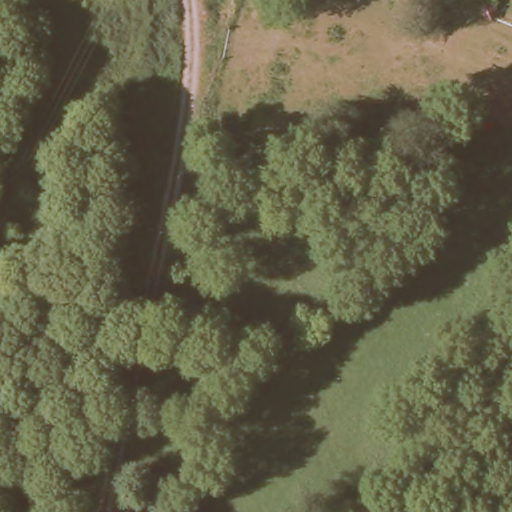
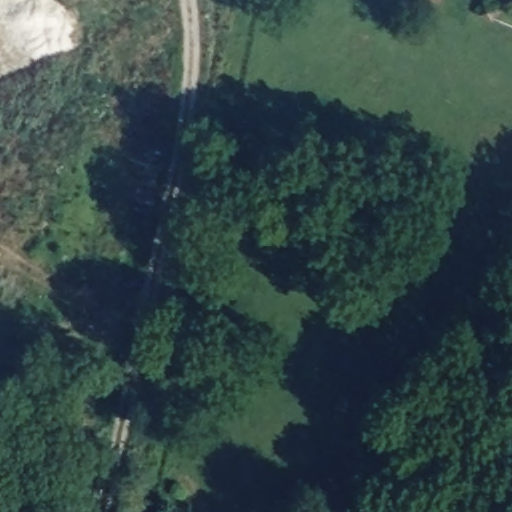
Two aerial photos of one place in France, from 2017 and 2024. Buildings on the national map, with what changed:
unchanged [(484,4),(487,5),(495,8),(491,18),(491,19),(479,15),(484,4)]

